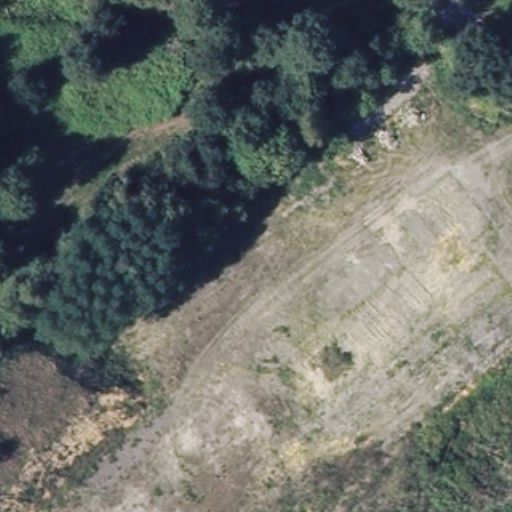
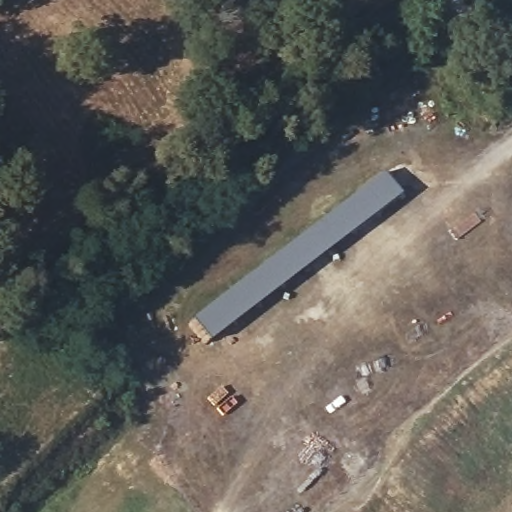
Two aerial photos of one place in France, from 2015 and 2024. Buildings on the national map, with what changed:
new [(401,197),(210,342),(193,319),(384,174),(401,197)]

